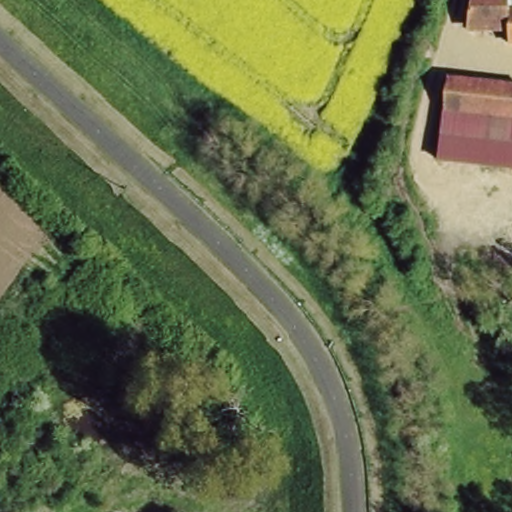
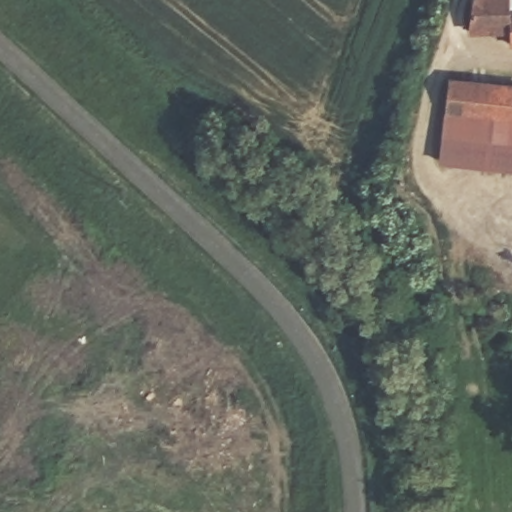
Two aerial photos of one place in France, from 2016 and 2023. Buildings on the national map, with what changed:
unchanged [(512,7),(512,42),(511,42),(511,24),(491,24),(491,30),(471,30),(471,8),(473,0),(511,0),(511,7),(512,7)]
unchanged [(439,114),(443,82),(502,87),(498,121),(439,114)]
unchanged [(512,88),(512,123),(498,121),(502,87),(512,88)]
unchanged [(498,121),(512,123),(512,152),(436,143),(439,114),(498,121)]

